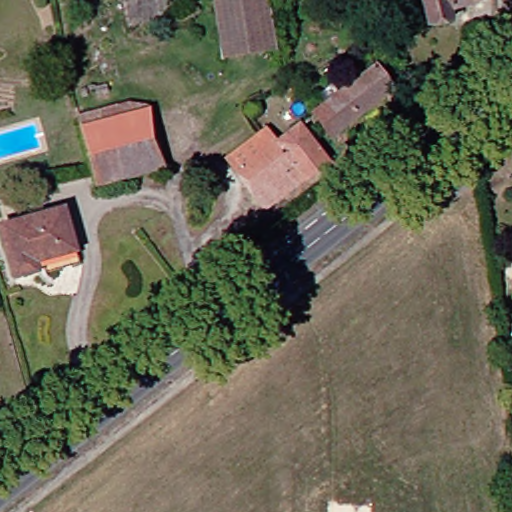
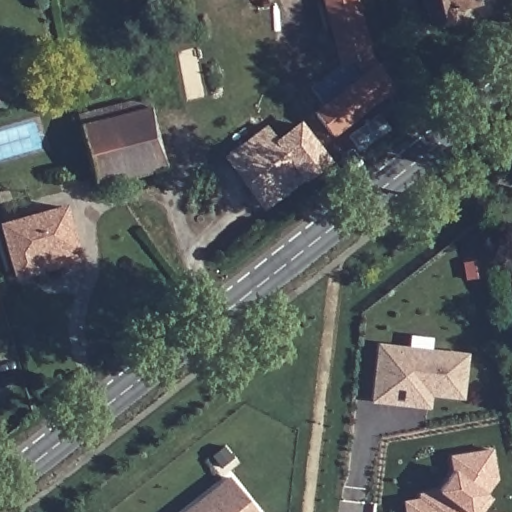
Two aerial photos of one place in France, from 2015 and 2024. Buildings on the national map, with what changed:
unchanged [(435,22),(428,0),(478,0),(454,7),(457,16),(435,22)]
unchanged [(334,132),(319,112),(379,66),(394,86),(401,80),(407,101),(401,106),(389,90),(334,132)]
unchanged [(160,102),(167,131),(129,141),(121,112),(160,102)]
unchanged [(176,162),(108,180),(92,120),(121,112),(129,141),(167,131),(176,162)]
unchanged [(277,208),(239,156),(278,127),(289,142),(310,127),(337,163),(277,208)]
unchanged [(45,272),(44,269),(21,275),(7,224),(71,206),(82,249),(85,261),(45,272)]
new [(381,344),(466,354),(462,393),(398,386),(397,400),(375,398),(381,344)]
unchanged [(41,404),(32,411),(31,412),(24,402),(28,399),(34,394),(41,404)]
new [(487,495),(492,499),(483,512),(405,512),(403,500),(418,498),(417,493),(437,491),(451,474),(449,456),(493,449),(497,480),(487,495)]
new [(261,512),(190,512),(234,477),(261,512)]

